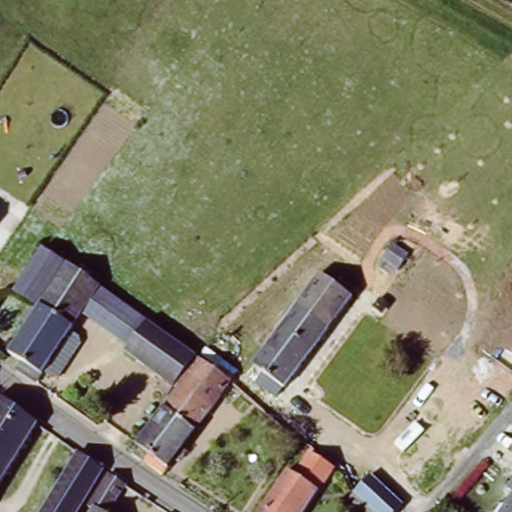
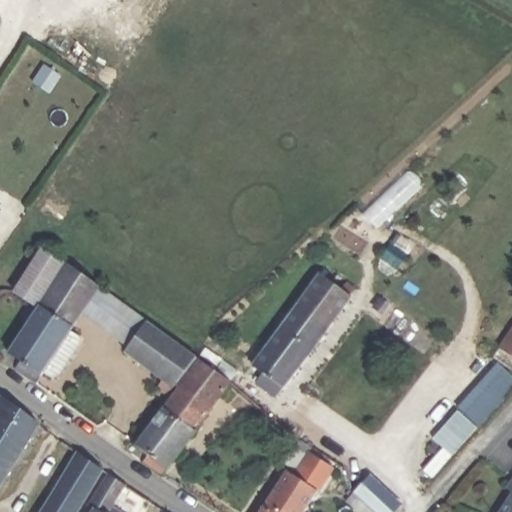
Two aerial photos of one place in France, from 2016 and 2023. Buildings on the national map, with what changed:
unchanged [(17,285),(43,248),(67,261),(66,267),(52,284),(40,299),(17,285)]
unchanged [(52,284),(66,267),(67,261),(126,305),(130,306),(197,355),(177,383),(168,395),(156,386),(162,379),(125,351),(127,347),(80,312),(70,328),(76,332),(80,342),(58,375),(50,376),(43,370),(35,381),(15,366),(21,360),(8,350),(52,284)]
unchanged [(258,358),(322,273),(325,274),(336,282),(337,282),(338,281),(344,287),(350,280),(356,285),(350,292),(354,295),(300,367),(295,375),(280,394),(260,380),(267,370),(255,362),(257,359),(258,358)]
unchanged [(378,298),(383,302),(380,307),(374,303),(378,298)]
unchanged [(512,357),(500,349),(512,330),(512,357)]
unchanged [(150,455),(138,445),(181,386),(177,383),(197,355),(232,380),(185,445),(195,451),(186,463),(177,457),(165,475),(145,461),(150,455)]
new [(433,438),(458,410),(497,363),(512,376),(512,390),(478,429),(433,479),(424,470),(443,447),(433,438)]
unchanged [(0,481),(0,402),(34,425),(0,481)]
unchanged [(312,448),(333,466),(305,512),(260,512),(289,470),(295,474),(312,448)]
unchanged [(100,472),(76,512),(40,512),(73,453),(100,472)]
unchanged [(113,503),(126,512),(87,512),(85,511),(106,476),(122,488),(113,503)]
unchanged [(370,477),(405,508),(402,512),(356,512),(346,504),(355,495),(357,492),(370,477)]
unchanged [(512,482),(512,495),(506,491),(512,482)]
unchanged [(512,512),(502,512),(512,496),(512,512)]

